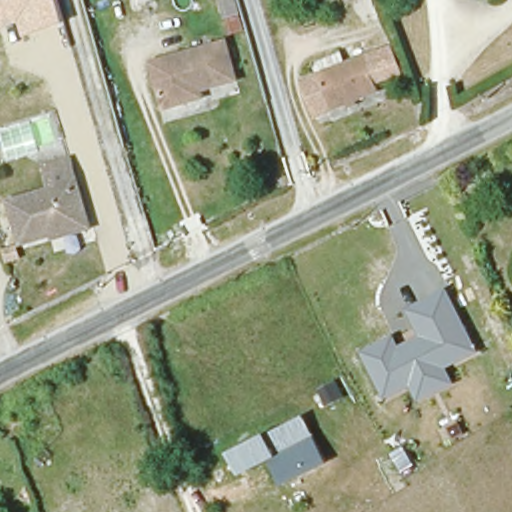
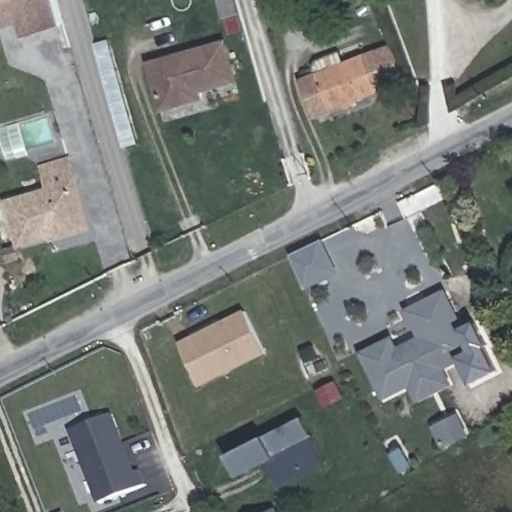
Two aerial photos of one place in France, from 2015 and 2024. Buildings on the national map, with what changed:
unchanged [(21,23),(0,29),(0,1),(1,0),(56,0),(64,24),(26,38),(21,23)]
unchanged [(238,81),(201,91),(203,98),(166,109),(154,64),(227,43),(238,81)]
unchanged [(377,94),(334,112),(332,110),(316,117),(301,84),(318,76),(315,71),(318,63),(342,53),(347,66),(403,45),(412,70),(374,86),(377,94)]
unchanged [(72,186),(85,228),(21,245),(9,204),(50,193),(45,176),(43,166),(68,160),(71,169),(76,185),(72,186)]
new [(321,242),(336,274),(305,288),(291,256),(321,242)]
unchanged [(448,366),(457,385),(419,404),(411,389),(386,402),(362,352),(396,334),(401,346),(423,336),(410,308),(450,289),(478,352),(448,366)]
new [(245,312),(265,353),(199,385),(179,344),(245,312)]
new [(139,476),(143,475),(147,485),(100,504),(71,431),(115,414),(139,476)]
unchanged [(281,489),(268,463),(236,479),(225,457),(305,418),(328,464),(281,489)]
demolished [(83,480),(105,471),(118,504),(98,512),(95,512),(83,480)]
new [(276,506),(279,512),(265,512),(276,506)]

